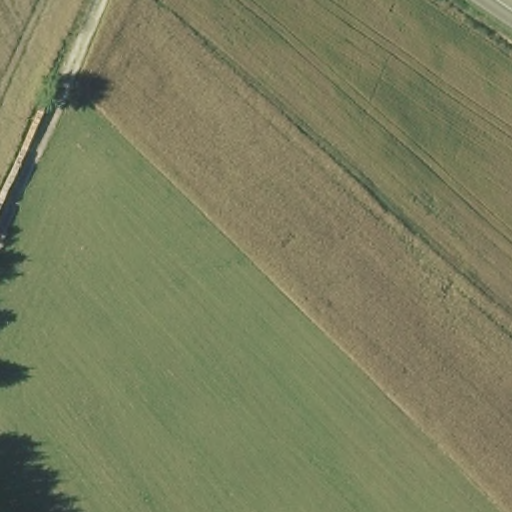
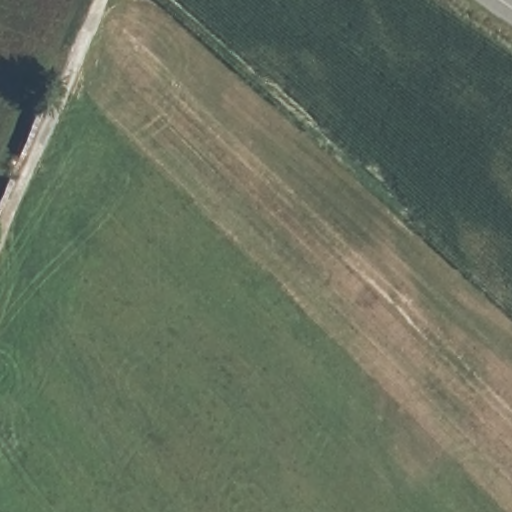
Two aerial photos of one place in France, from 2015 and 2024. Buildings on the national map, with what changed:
[]

